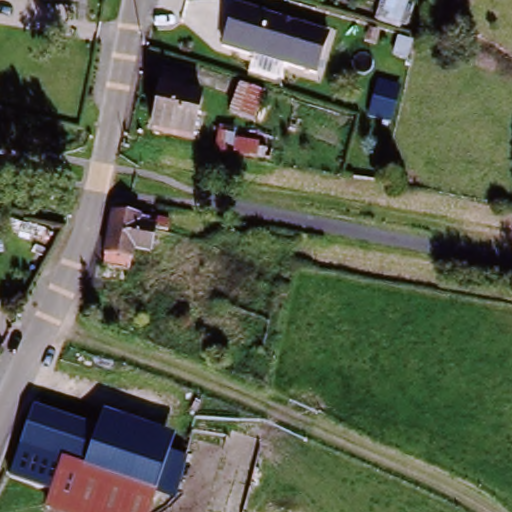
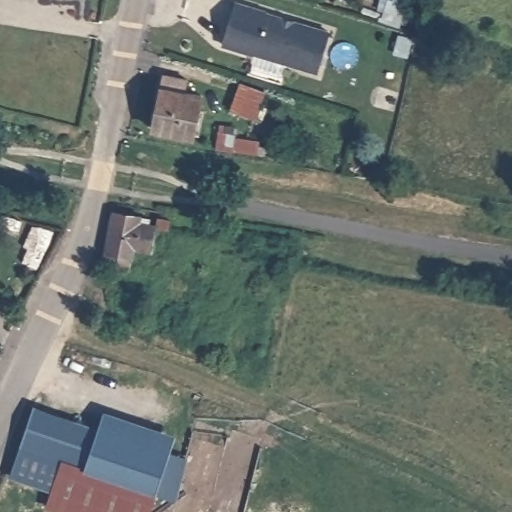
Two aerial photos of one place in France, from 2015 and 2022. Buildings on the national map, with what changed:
unchanged [(230,4),(327,31),(314,77),(219,48),(230,4)]
unchanged [(162,90),(185,94),(180,114),(191,120),(184,141),(150,134),(162,90)]
unchanged [(113,213),(160,224),(159,241),(158,251),(134,248),(127,273),(102,265),(110,230),(113,213)]
unchanged [(39,405),(102,427),(91,456),(64,452),(60,463),(54,481),(15,465),(22,449),(39,405)]
unchanged [(172,454),(154,501),(60,463),(64,452),(91,456),(102,427),(172,454)]
unchanged [(88,512),(75,507),(50,497),(47,496),(54,481),(60,463),(154,501),(150,512),(88,512)]

